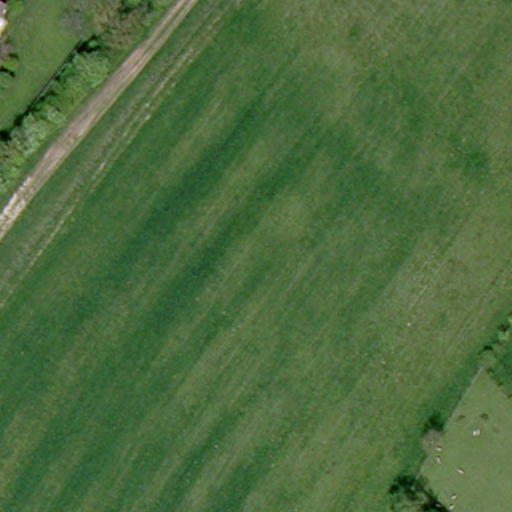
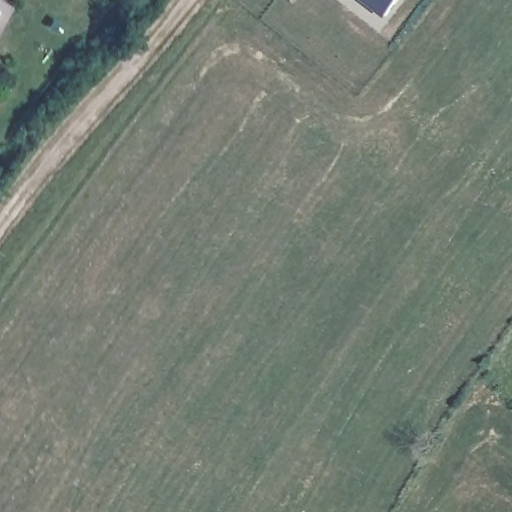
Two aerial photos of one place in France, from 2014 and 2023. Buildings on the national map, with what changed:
unchanged [(1,2),(0,5),(0,0),(1,2)]
new [(386,16),(365,0),(399,0),(386,16)]

